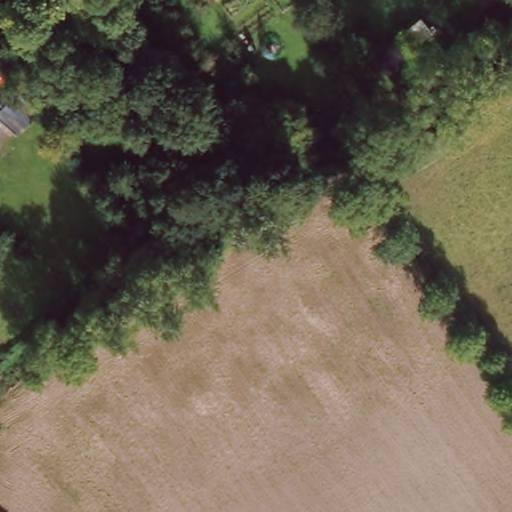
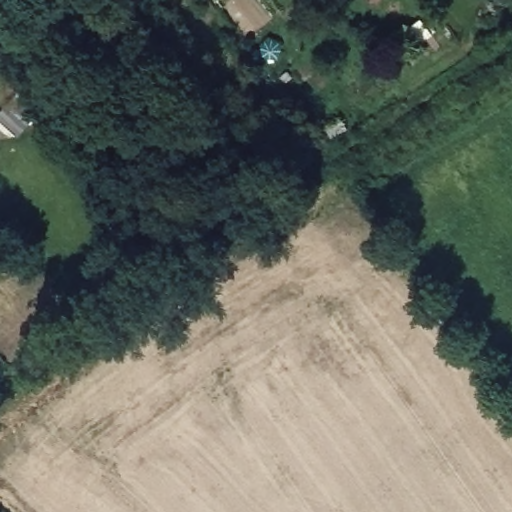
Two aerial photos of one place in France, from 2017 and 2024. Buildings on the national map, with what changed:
unchanged [(22,143),(6,121),(33,101),(50,122),(22,143)]

